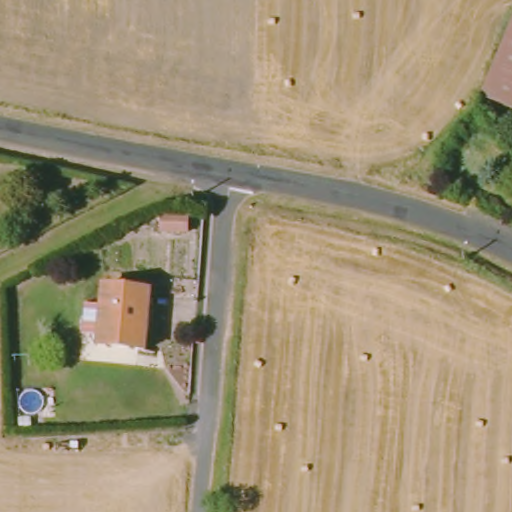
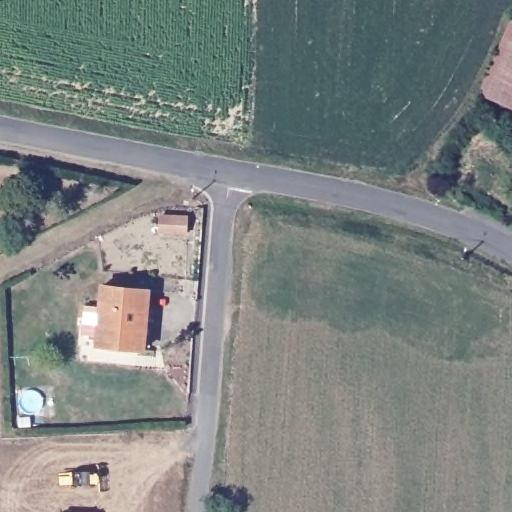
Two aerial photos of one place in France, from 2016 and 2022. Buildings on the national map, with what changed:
unchanged [(512,101),(510,105),(477,93),(508,18),(512,18),(512,101)]
unchanged [(94,345),(98,285),(141,289),(135,348),(94,345)]

